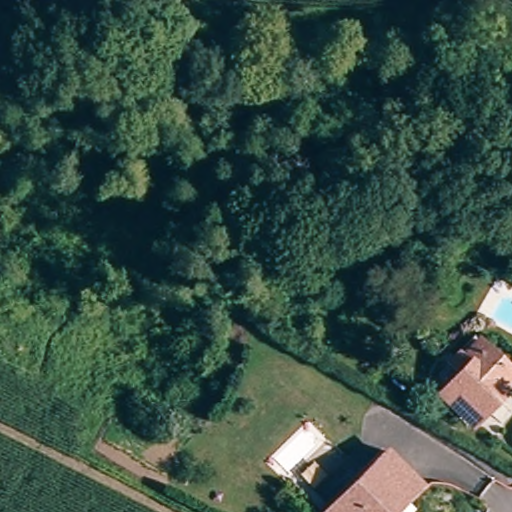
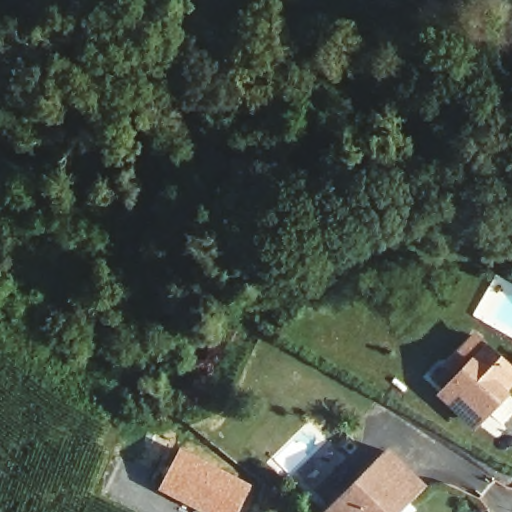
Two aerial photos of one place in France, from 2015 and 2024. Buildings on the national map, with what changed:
unchanged [(512,363),(512,376),(511,378),(484,415),(447,387),(470,355),(461,348),(472,333),(481,341),(508,361),(512,363)]
new [(178,446),(251,485),(237,512),(202,512),(156,489),(178,446)]
unchanged [(329,509),(387,448),(423,482),(394,512),(326,512),(329,509)]

